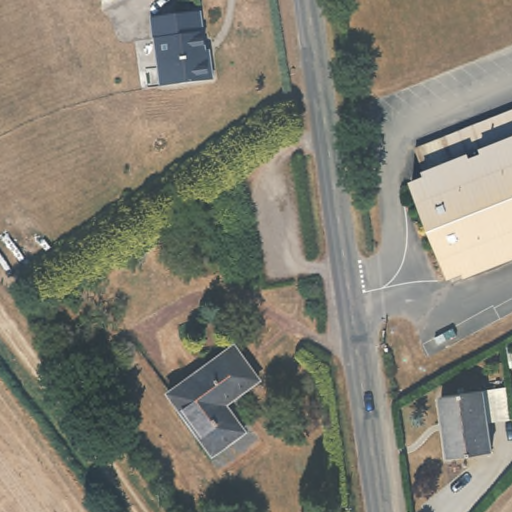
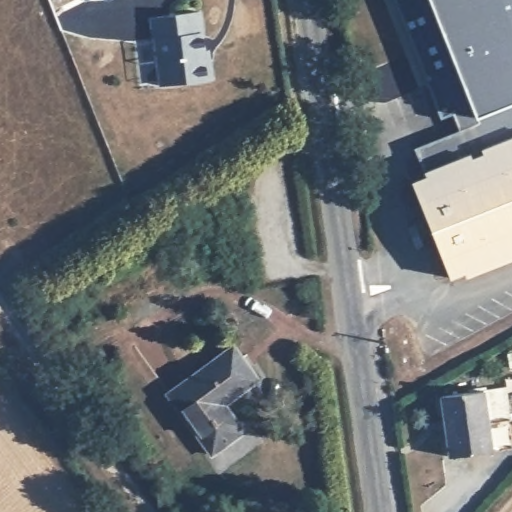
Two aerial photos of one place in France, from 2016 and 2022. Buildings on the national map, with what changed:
new [(460,136),(451,114),(439,117),(392,0),(512,0),(512,114),(460,136)]
unchanged [(201,8),(212,80),(164,88),(152,16),(201,8)]
unchanged [(410,190),(423,185),(412,156),(512,114),(512,266),(451,290),(410,190)]
unchanged [(241,351),(259,386),(222,407),(237,439),(202,457),(166,391),(241,351)]
unchanged [(485,395),(493,455),(450,461),(442,401),(485,395)]

